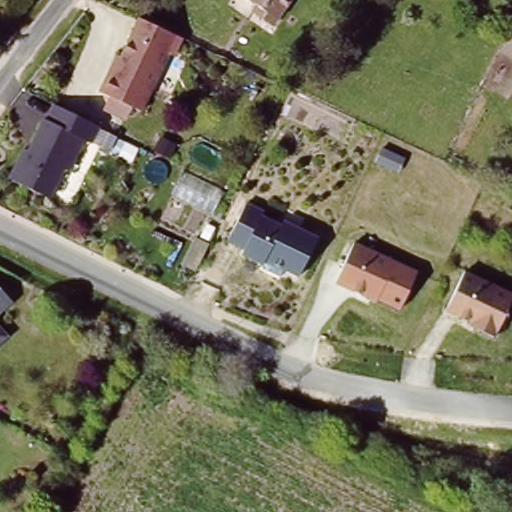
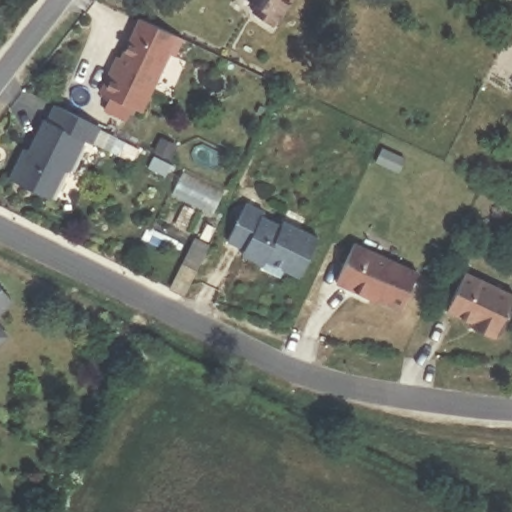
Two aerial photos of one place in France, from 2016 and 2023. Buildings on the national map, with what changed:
unchanged [(277,13),(274,19),(254,5),(257,0),(289,0),(280,14),(277,13)]
unchanged [(101,91),(111,70),(115,72),(140,16),(183,36),(175,55),(169,52),(142,110),(131,105),(125,118),(106,109),(112,96),(101,91)]
unchanged [(25,152),(30,154),(45,122),(47,124),(55,107),(100,130),(92,147),(85,143),(69,174),(65,172),(50,202),(10,182),(25,152)]
unchanged [(104,137),(112,141),(105,155),(97,151),(104,137)]
unchanged [(262,211),(261,213),(281,223),(284,219),(318,237),(297,277),(265,260),(263,264),(242,254),(245,249),(227,241),(246,203),(262,211)]
unchanged [(398,309),(376,298),(375,302),(334,282),(353,242),(418,270),(398,309)]
unchanged [(512,294),(512,297),(494,337),(469,326),(472,322),(445,311),(464,272),(512,294)]
unchanged [(0,317),(0,291),(13,305),(0,317)]
unchanged [(0,347),(0,331),(8,340),(0,347)]

